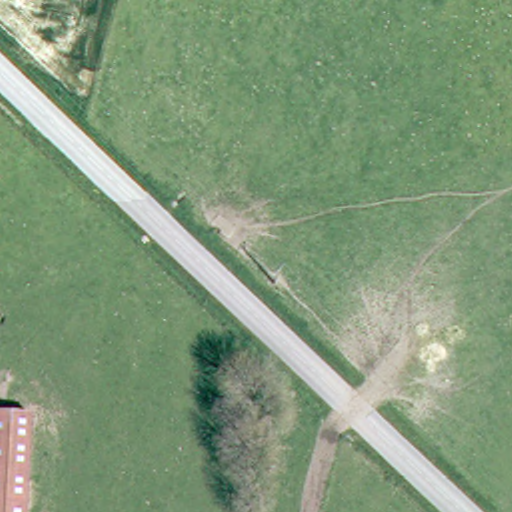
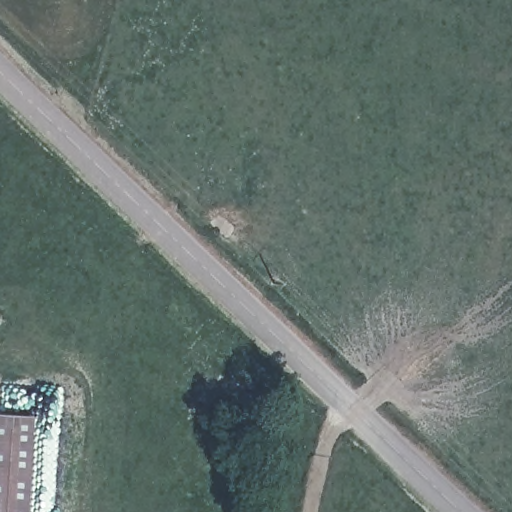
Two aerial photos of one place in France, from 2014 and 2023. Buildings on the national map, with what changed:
unchanged [(26,416),(21,512),(0,512),(0,416),(26,416)]

